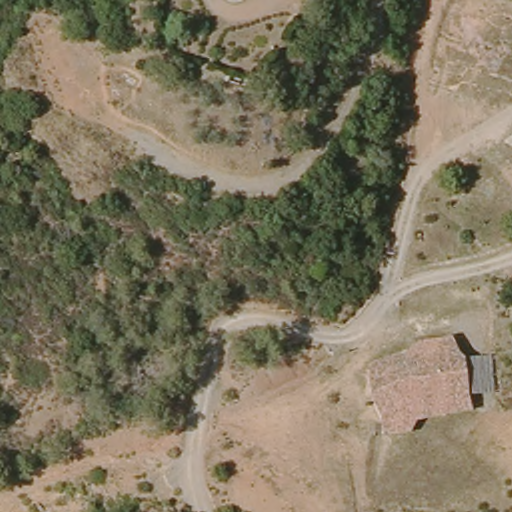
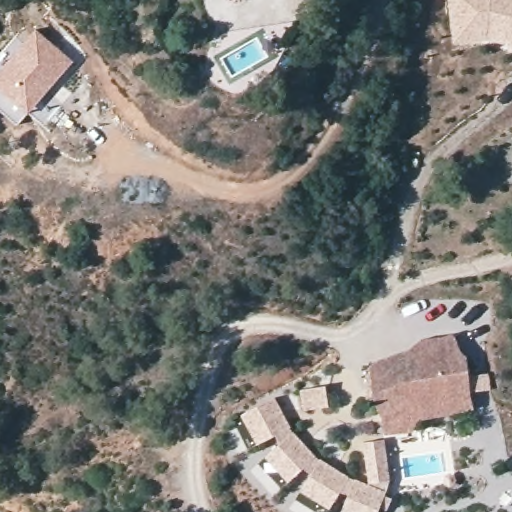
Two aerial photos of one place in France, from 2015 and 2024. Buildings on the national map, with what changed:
new [(487,41),(452,43),(448,0),(512,0),(512,48),(507,45),(487,41)]
new [(37,27),(72,61),(12,121),(0,109),(0,65),(37,27)]
unchanged [(375,362),(390,355),(412,348),(426,337),(457,333),(468,354),(496,353),(498,390),(475,391),(475,407),(423,422),(421,431),(387,432),(386,421),(370,412),(375,362)]
new [(327,402),(300,408),(296,388),(322,382),(327,402)]
new [(389,481),(377,512),(342,512),(348,496),(340,492),(330,509),(300,491),(310,476),(302,469),(287,482),(265,457),(278,445),(273,437),(256,445),(241,414),(275,398),(290,430),(318,458),(352,478),(368,484),(363,442),(383,440),(389,481)]

